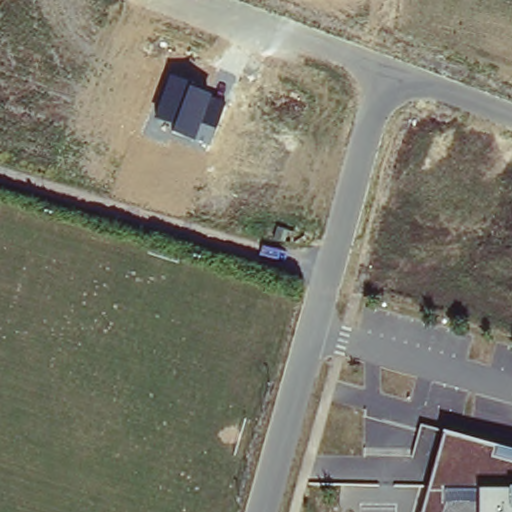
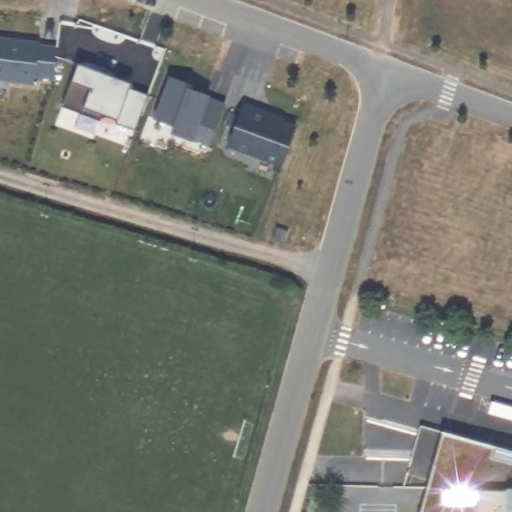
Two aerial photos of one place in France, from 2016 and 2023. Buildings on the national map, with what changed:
new [(50,78),(32,75),(31,83),(0,79),(0,36),(37,41),(36,43),(53,45),(50,78)]
new [(133,130),(114,122),(115,119),(82,107),(80,113),(59,105),(75,62),(129,82),(127,87),(146,94),(133,130)]
unchanged [(169,77),(193,84),(191,88),(209,95),(223,101),(210,144),(193,140),(171,131),(173,123),(155,118),(169,77)]
new [(281,164),(227,143),(242,103),(273,114),(272,117),(296,126),(281,164)]
new [(100,114),(98,120),(80,113),(82,107),(100,114)]
unchanged [(512,446),(512,512),(420,512),(443,427),(512,446)]

